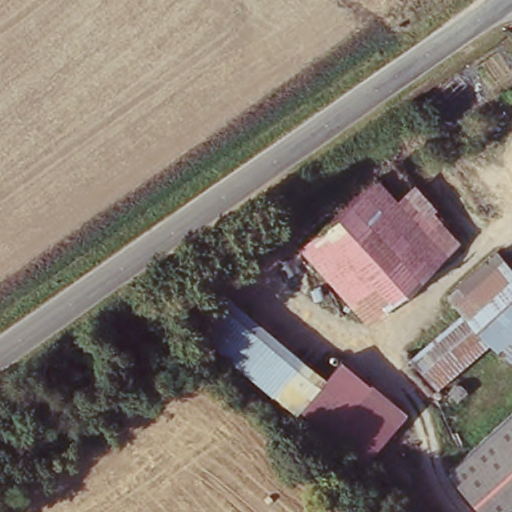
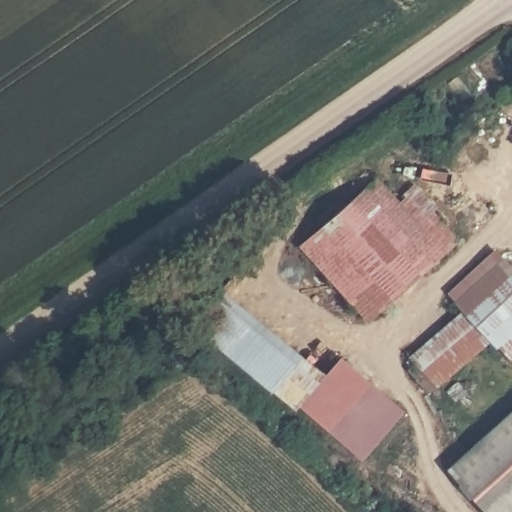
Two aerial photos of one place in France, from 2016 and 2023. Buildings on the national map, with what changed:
unchanged [(397,204),(412,190),(457,244),(445,254),(370,328),(299,254),(376,184),(397,204)]
unchanged [(488,252),(512,274),(512,336),(495,353),(481,338),(450,308),(445,302),(488,252)]
unchanged [(301,363),(281,389),(231,350),(197,324),(218,297),(260,330),(301,363)]
unchanged [(431,396),(401,369),(431,331),(450,308),(481,338),(460,363),(431,396)]
unchanged [(495,353),(512,336),(512,361),(508,364),(495,353)]
unchanged [(363,470),(298,408),(342,359),(411,414),(363,470)]
unchanged [(512,414),(512,498),(471,454),(512,414)]
unchanged [(512,498),(512,512),(484,512),(448,476),(471,454),(512,498)]

